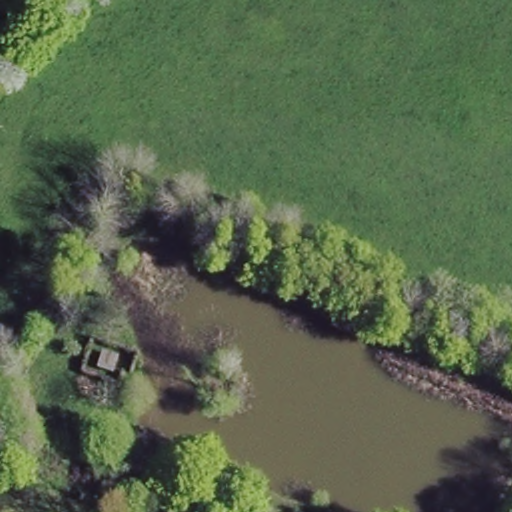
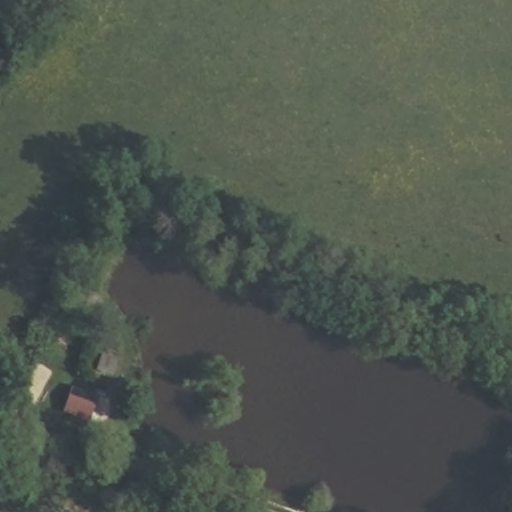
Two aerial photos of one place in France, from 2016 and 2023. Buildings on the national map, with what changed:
unchanged [(93,368),(100,352),(116,358),(111,373),(93,368)]

